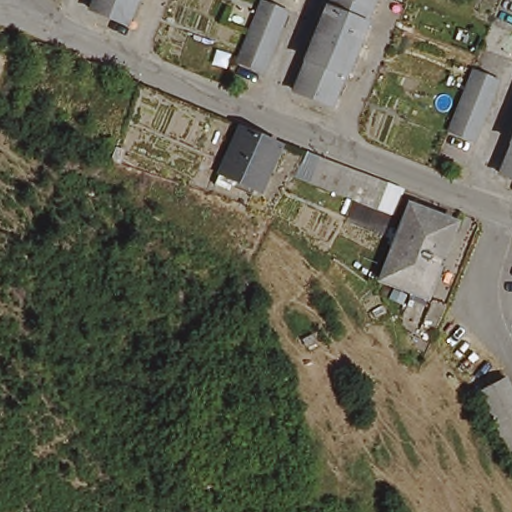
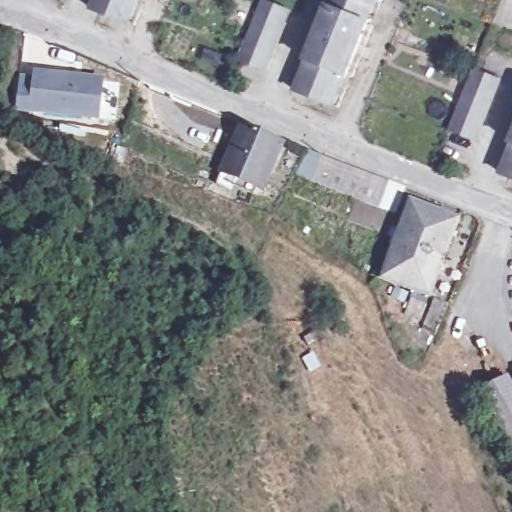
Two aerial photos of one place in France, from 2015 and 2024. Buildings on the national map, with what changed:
unchanged [(126,25),(90,10),(95,0),(137,0),(126,25)]
unchanged [(283,19),(280,25),(262,72),(235,61),(260,0),(261,0),(286,10),(284,15),(283,19)]
unchanged [(308,56),(304,54),(308,46),(326,3),(326,2),(329,4),(330,0),(371,0),(363,19),(366,20),(345,72),(343,71),(330,101),(337,104),(333,116),(298,101),(302,91),(295,88),(308,56)]
unchanged [(477,138),(449,127),(476,65),(503,76),(494,96),(488,113),(477,138)]
new [(19,71),(31,73),(33,67),(103,76),(98,119),(13,109),(19,71)]
unchanged [(261,190),(220,172),(239,126),(281,143),(261,190)]
unchanged [(502,172),(512,147),(512,177),(502,172)]
unchanged [(351,211),(334,204),(319,198),(303,191),(288,185),(301,160),(317,166),(334,173),(349,180),(364,186),(378,191),(401,201),(389,227),(387,233),(397,238),(407,213),(454,232),(425,305),(414,301),(378,286),(391,254),(384,251),(386,246),(343,227),(351,211)]
unchanged [(424,312),(417,330),(404,325),(411,307),(424,312)]
unchanged [(435,341),(421,335),(432,307),(446,313),(435,341)]
unchanged [(512,388),(512,457),(479,393),(507,378),(512,388)]

